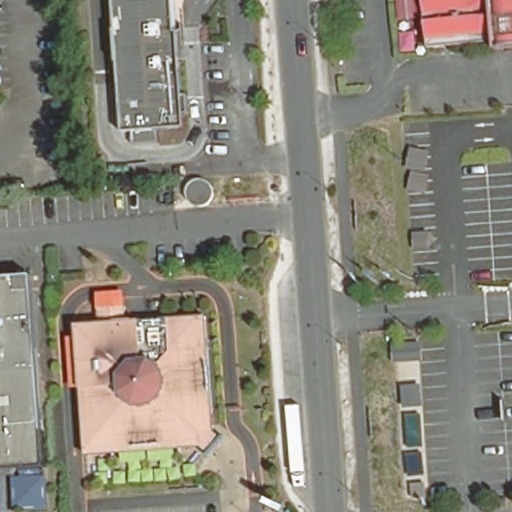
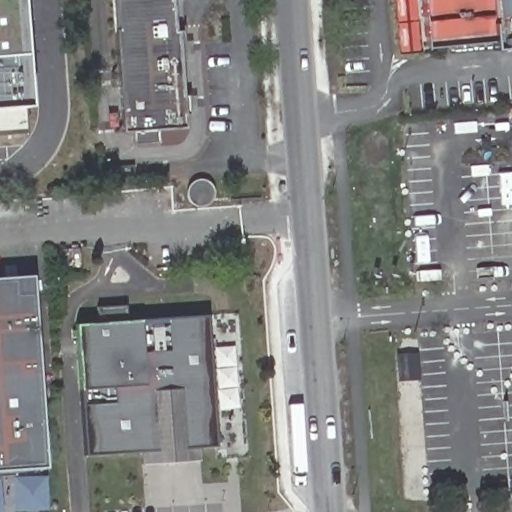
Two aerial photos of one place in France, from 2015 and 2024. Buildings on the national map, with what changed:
new [(28,105),(18,106),(24,131),(0,133),(0,0),(20,0),(28,105)]
unchanged [(182,127),(120,131),(109,0),(172,0),(182,127)]
unchanged [(487,45),(486,35),(418,41),(414,0),(512,0),(512,43),(487,45)]
unchanged [(200,186),(202,186),(203,186),(204,187),(205,187),(207,187),(208,188),(209,189),(210,190),(211,190),(212,191),(213,192),(214,194),(214,195),(214,196),(215,197),(215,198),(215,199),(215,200),(215,201),(215,202),(215,203),(215,204),(215,205),(214,206),(214,207),(214,208),(213,209),(213,210),(212,210),(212,211),(210,211),(210,212),(209,213),(208,214),(207,214),(205,215),(204,215),(203,215),(202,215),(200,215),(199,215),(198,215),(197,215),(195,214),(194,214),(194,213),(193,212),(192,212),(192,211),(190,211),(190,210),(189,209),(189,207),(188,206),(188,205),(187,205),(187,204),(187,202),(187,201),(187,200),(187,199),(187,197),(188,197),(188,196),(188,195),(189,194),(189,193),(189,192),(190,191),(191,191),(192,190),(193,190),(193,189),(194,189),(195,188),(196,187),(197,187),(198,187),(199,186),(200,186)]
unchanged [(46,466),(6,470),(0,470),(0,278),(31,276),(46,466)]
unchanged [(139,320),(162,318),(206,315),(214,432),(224,438),(209,455),(200,447),(85,455),(81,390),(75,325),(99,323),(98,307),(96,292),(124,290),(125,304),(128,321),(139,320)]

